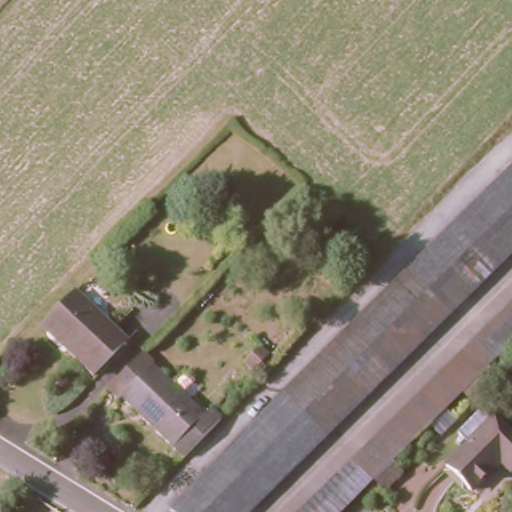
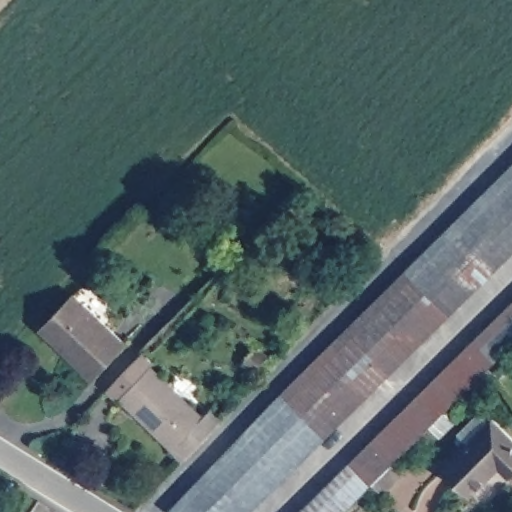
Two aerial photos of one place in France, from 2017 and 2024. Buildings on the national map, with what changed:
unchanged [(327,436),(284,391),(512,168),(512,260),(327,436)]
unchanged [(69,355),(71,353),(46,329),(77,297),(128,343),(95,379),(69,355)]
unchanged [(373,485),(346,512),(301,512),(354,457),(512,305),(512,348),(491,368),(498,377),(488,388),(480,380),(475,384),(391,467),(399,478),(381,496),(373,485)]
unchanged [(248,370),(240,361),(256,343),(266,352),(248,370)]
unchanged [(122,401),(119,403),(108,393),(147,352),(158,363),(155,367),(207,415),(214,410),(225,419),(186,460),(122,401)]
unchanged [(327,436),(252,512),(172,512),(171,512),(284,391),(327,436)]
unchanged [(476,446),(467,436),(490,414),(499,424),(502,422),(512,433),(512,473),(506,467),(477,493),(452,468),(476,446)]

